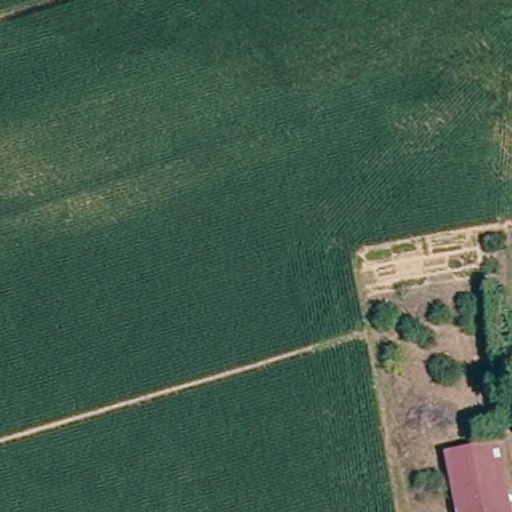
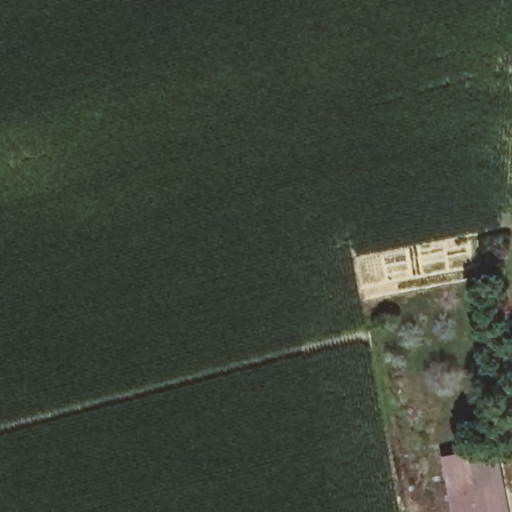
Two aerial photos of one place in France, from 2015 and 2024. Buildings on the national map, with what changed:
unchanged [(493,446),(507,512),(456,512),(445,456),(493,446)]

